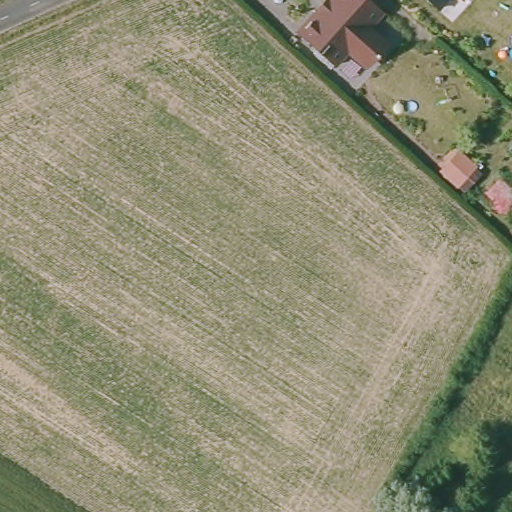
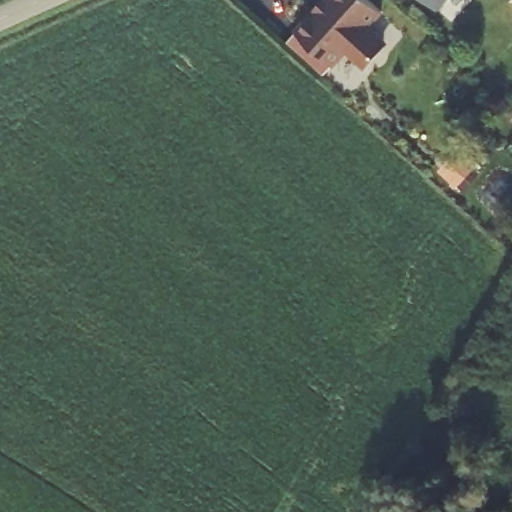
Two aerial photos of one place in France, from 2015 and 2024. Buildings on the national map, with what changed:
unchanged [(361,26),(377,40),(377,47),(363,63),(355,64),(340,50),(326,65),(289,32),(318,0),(362,0),(375,11),(361,26)]
unchanged [(420,0),(438,0),(430,9),(420,0)]

